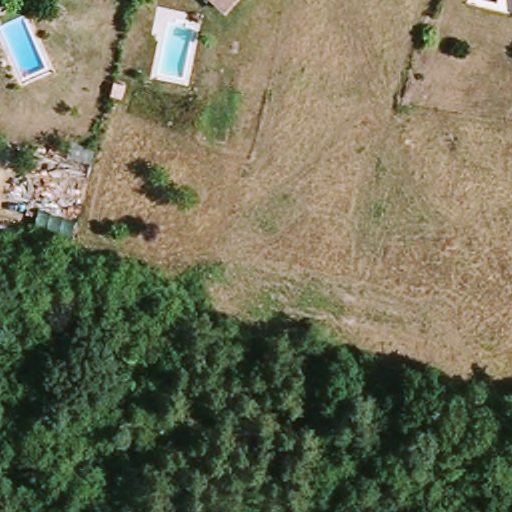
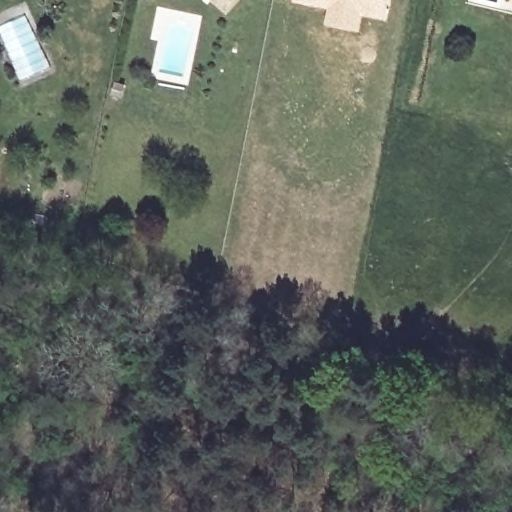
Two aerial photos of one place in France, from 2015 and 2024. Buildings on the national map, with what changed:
unchanged [(232,5),(226,0),(236,0),(232,5)]
new [(291,0),(389,0),(386,21),(363,16),(360,32),(323,24),(327,9),(291,1),(291,0)]

